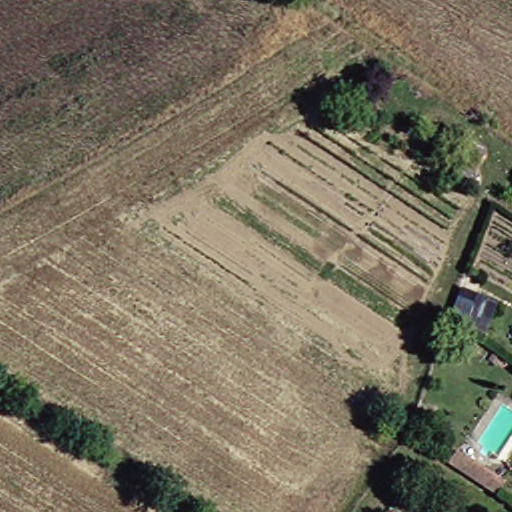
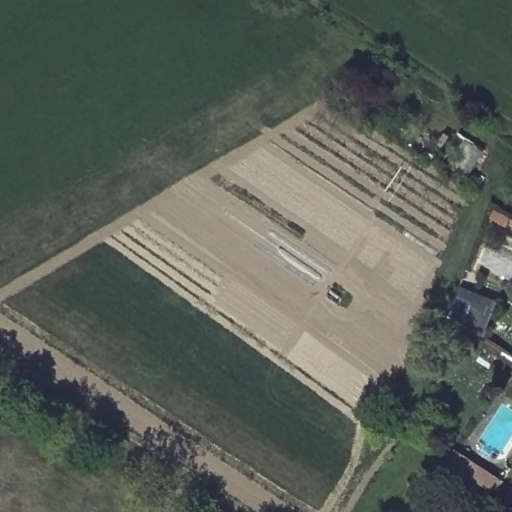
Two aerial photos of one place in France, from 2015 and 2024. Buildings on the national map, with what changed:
unchanged [(502,486),(496,501),(445,469),(453,455),(502,486)]

